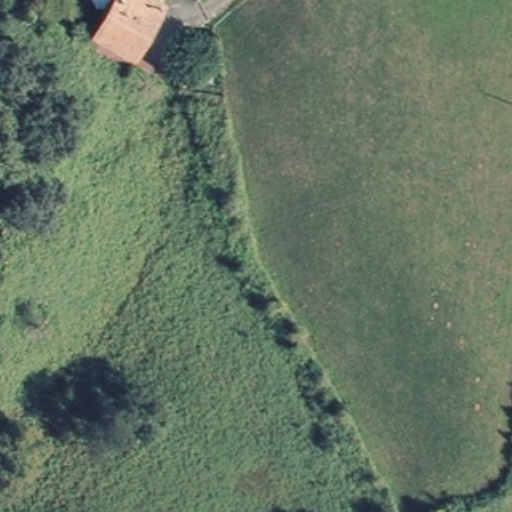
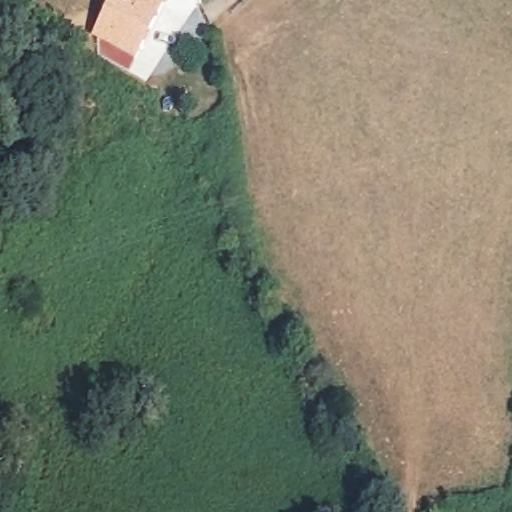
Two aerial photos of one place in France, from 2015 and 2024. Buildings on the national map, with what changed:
unchanged [(139,55),(103,37),(122,0),(157,0),(166,5),(139,55)]

